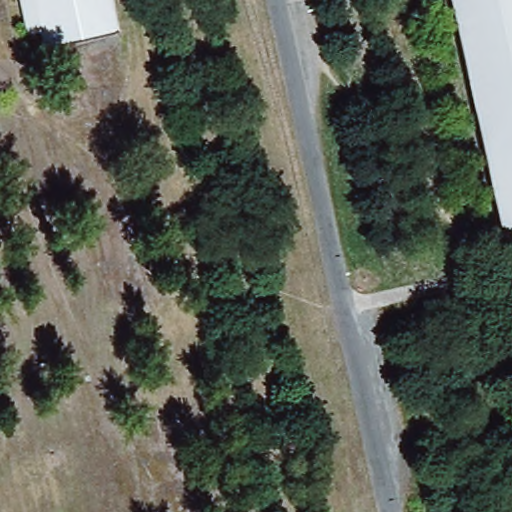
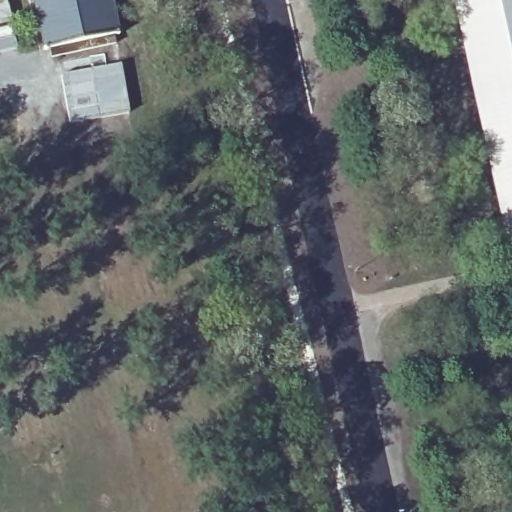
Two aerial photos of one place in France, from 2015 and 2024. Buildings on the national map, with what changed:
new [(0,21),(0,0),(7,0),(12,19),(0,21)]
unchanged [(28,35),(21,0),(112,0),(119,34),(45,49),(42,30),(28,35)]
unchanged [(512,0),(512,236),(504,238),(451,0),(512,0)]
new [(18,48),(0,52),(0,26),(12,24),(18,48)]
new [(84,64),(84,61),(105,54),(107,64),(121,62),(130,113),(70,123),(60,69),(84,64)]

